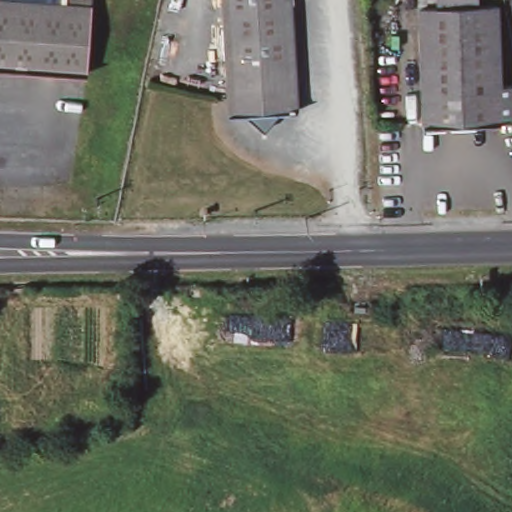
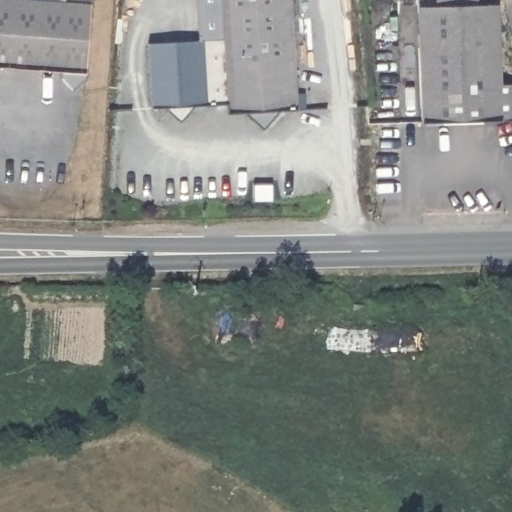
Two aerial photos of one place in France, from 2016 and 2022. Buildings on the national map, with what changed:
unchanged [(94,73),(0,67),(0,0),(54,0),(96,2),(94,73)]
new [(194,105),(181,120),(167,106),(154,106),(150,43),(198,39),(197,0),(222,0),(226,102),(194,105)]
unchanged [(222,0),(291,0),(295,107),(227,110),(222,0)]
unchanged [(512,82),(512,120),(428,121),(423,10),(439,10),(439,0),(477,0),(477,10),(498,9),(502,81),(512,82)]

